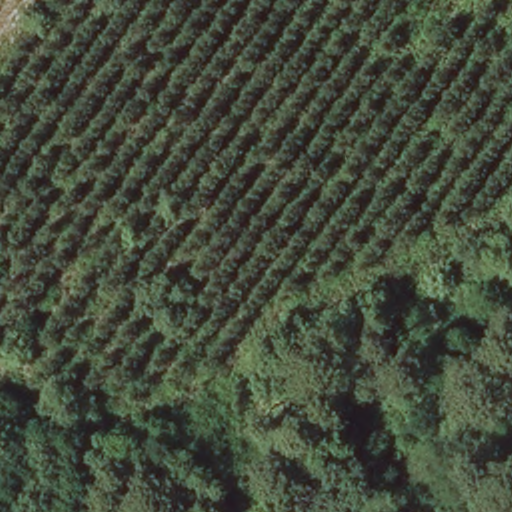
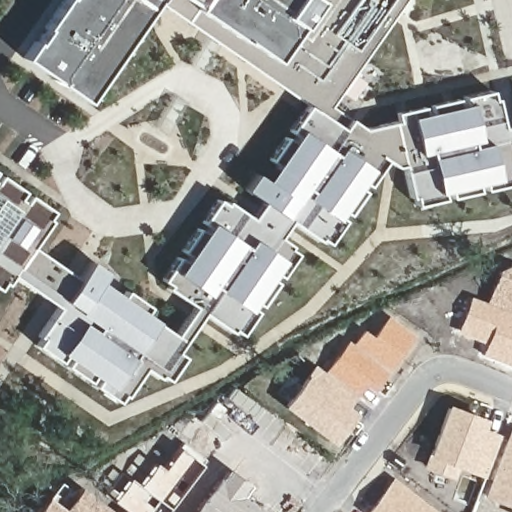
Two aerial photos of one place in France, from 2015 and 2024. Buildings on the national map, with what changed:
new [(28,39),(31,41),(40,26),(39,25),(56,0),(153,0),(84,102),(17,56),(28,39)]
new [(330,104),(351,120),(345,130),(308,104),(156,0),(405,0),(330,104)]
new [(365,128),(396,121),(395,113),(424,106),(425,113),(431,112),(430,104),(457,98),(459,105),(465,104),(463,95),(492,90),(493,98),(498,97),(504,126),(512,124),(512,161),(512,174),(512,184),(485,190),(483,182),(477,184),(479,191),(451,197),(450,190),(443,192),(445,199),(416,206),(415,197),(411,198),(404,166),(396,167),(387,161),(388,159),(345,130),(351,120),(365,128)]
new [(2,175),(26,191),(20,199),(25,202),(31,194),(55,211),(50,218),(52,220),(35,247),(80,278),(91,262),(107,273),(101,282),(124,297),(126,293),(148,308),(145,313),(176,335),(195,307),(167,288),(170,285),(162,280),(179,256),(185,261),(189,255),(182,251),(199,227),(205,232),(209,227),(202,222),(219,199),(226,204),(229,200),(253,218),(263,202),(246,190),(258,172),(268,180),(279,165),(272,160),(287,137),(293,141),(296,136),(290,131),(308,104),(345,130),(388,159),(387,161),(369,186),(362,182),(359,187),(365,191),(350,215),(342,210),(339,215),(345,220),(329,244),(321,239),(320,241),(292,222),(281,237),(292,246),(290,248),(298,253),(281,277),(275,272),(271,278),(278,283),(262,306),(255,302),(251,306),(258,311),(241,335),(234,330),(232,333),(204,314),(178,351),(186,357),(169,381),(161,376),(160,378),(146,369),(126,397),(124,395),(119,402),(95,386),(100,379),(95,376),(90,382),(66,366),(71,360),(66,356),(61,362),(37,346),(42,339),(39,336),(59,307),(14,277),(8,285),(5,283),(0,290),(0,178),(2,175)]
new [(486,342),(456,332),(470,296),(486,302),(499,271),(512,265),(512,366),(481,354),(486,342)]
new [(347,407),(356,414),(334,446),(282,408),(307,372),(313,364),(325,372),(348,341),(353,343),(362,329),(373,338),(388,316),(415,335),(375,392),(366,385),(347,407)]
new [(449,406),(487,421),(485,429),(500,435),(485,478),(460,469),(455,480),(425,468),(449,406)]
new [(485,498),(512,427),(512,512),(509,512),(510,508),(485,498)]
new [(201,465),(165,512),(126,512),(112,500),(128,478),(140,485),(155,462),(164,468),(179,448),(201,465)]
new [(221,477),(226,470),(250,485),(244,496),(263,512),(192,512),(220,476),(221,477)]
new [(438,512),(367,512),(392,478),(438,512)]
new [(37,512),(49,497),(60,482),(77,494),(81,488),(113,512),(37,512)]

